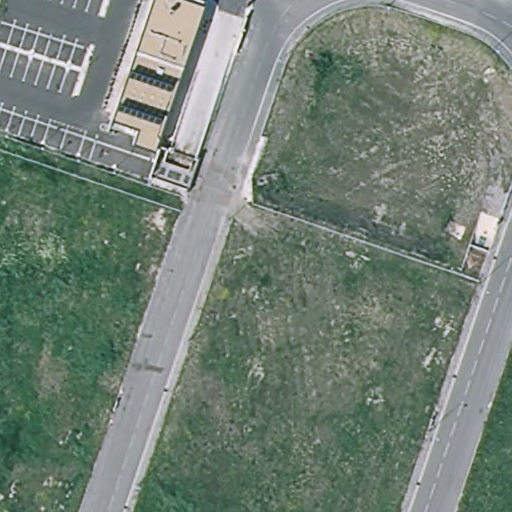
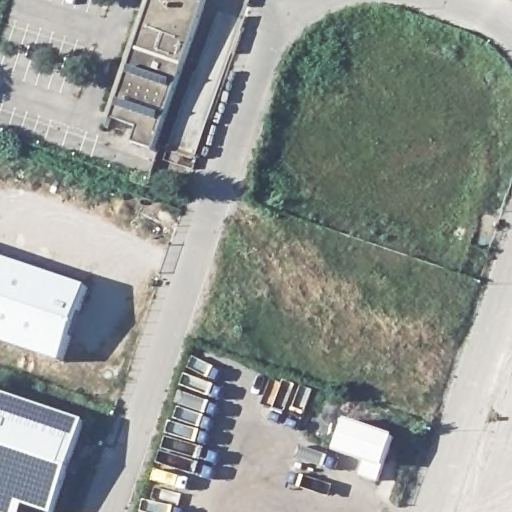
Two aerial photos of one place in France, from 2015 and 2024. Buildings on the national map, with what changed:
unchanged [(134,143),(138,127),(110,118),(150,0),(205,0),(156,149),(134,143)]
new [(88,286),(62,363),(0,342),(0,257),(88,286)]
new [(85,420),(54,512),(41,512),(25,507),(23,512),(0,512),(0,392),(85,420)]
new [(363,478),(369,464),(338,453),(348,424),(396,441),(381,484),(363,478)]

